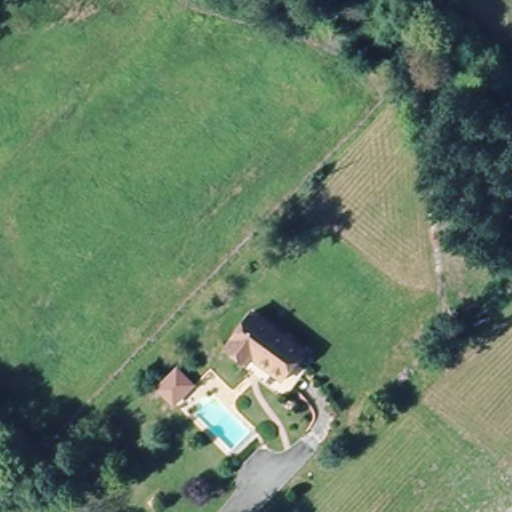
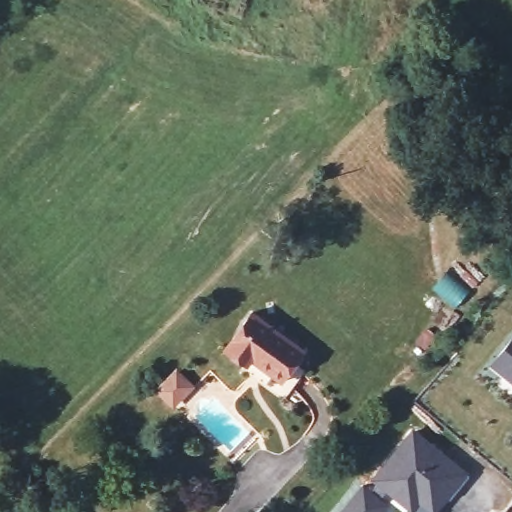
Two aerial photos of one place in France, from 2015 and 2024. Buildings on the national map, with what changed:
unchanged [(248,365),(227,348),(253,312),(305,351),(283,381),(252,359),(248,365)]
unchanged [(507,375),(506,376),(492,364),(512,340),(512,378),(507,375)]
new [(394,493),(376,478),(414,431),(470,477),(456,493),(451,500),(446,496),(433,511),(419,498),(412,507),(394,493)]
new [(390,506),(384,512),(340,512),(363,484),(390,506)]

